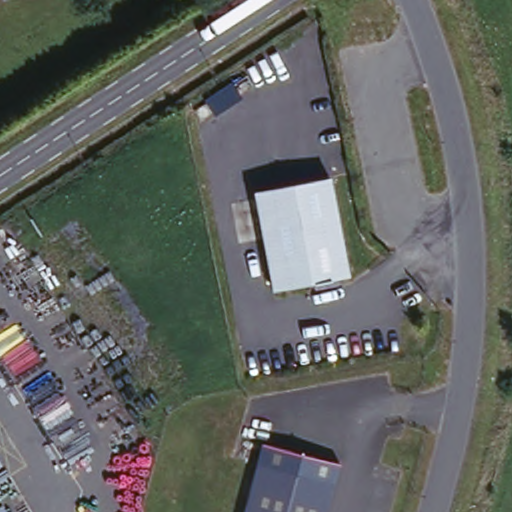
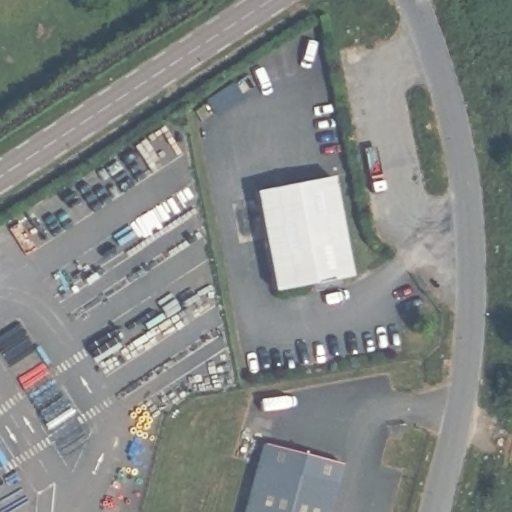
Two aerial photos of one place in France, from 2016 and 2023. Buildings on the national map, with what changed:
unchanged [(254,192),(331,176),(352,278),(276,294),(254,192)]
unchanged [(260,460),(338,482),(332,505),(253,483),(260,460)]
unchanged [(332,505),(330,512),(245,512),(253,483),(332,505)]

